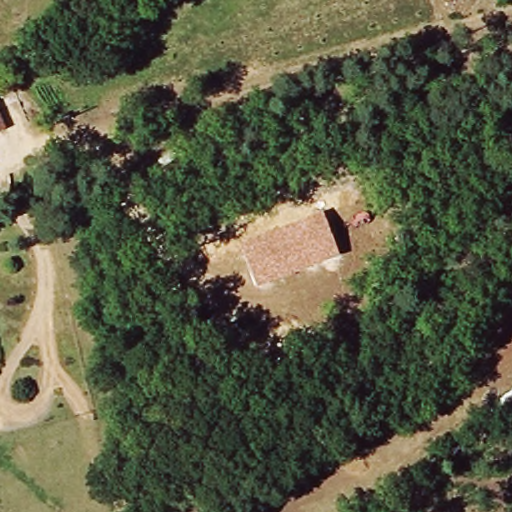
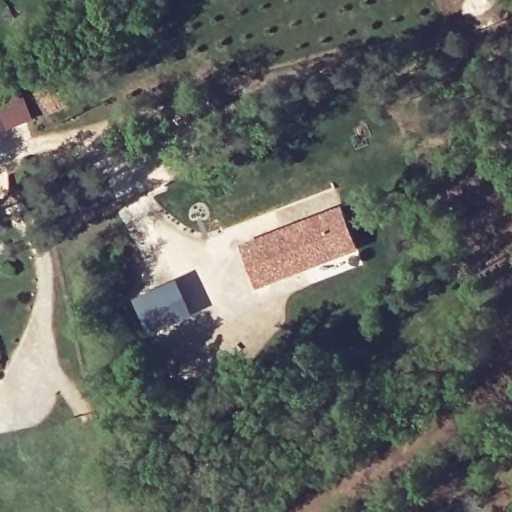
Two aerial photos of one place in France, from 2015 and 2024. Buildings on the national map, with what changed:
unchanged [(340,257),(256,288),(241,245),(324,213),(340,257)]
new [(174,279),(192,315),(150,335),(131,300),(174,279)]

